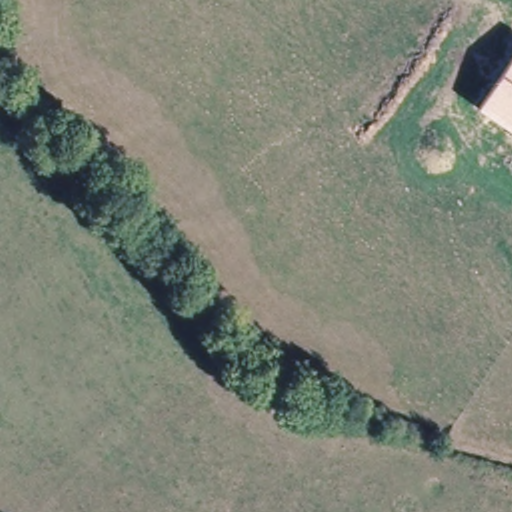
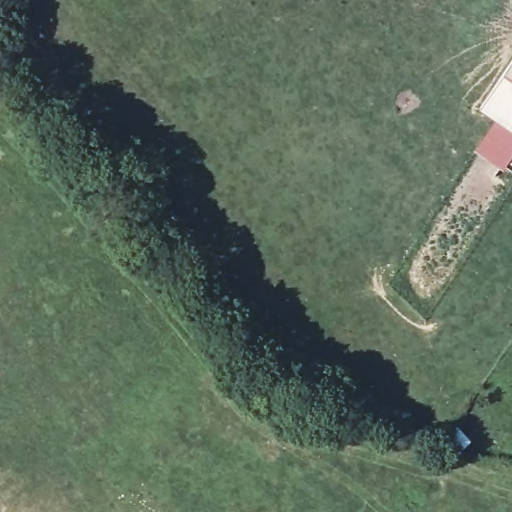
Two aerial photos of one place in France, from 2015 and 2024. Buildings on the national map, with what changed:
unchanged [(512,130),(494,119),(480,110),(512,60),(512,130)]
new [(512,130),(512,153),(500,169),(472,150),(494,119),(512,130)]

